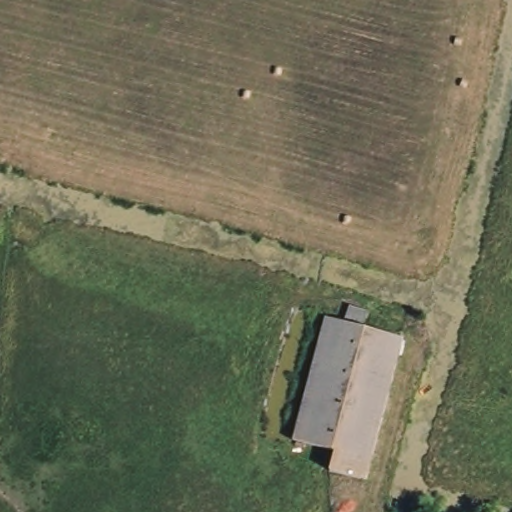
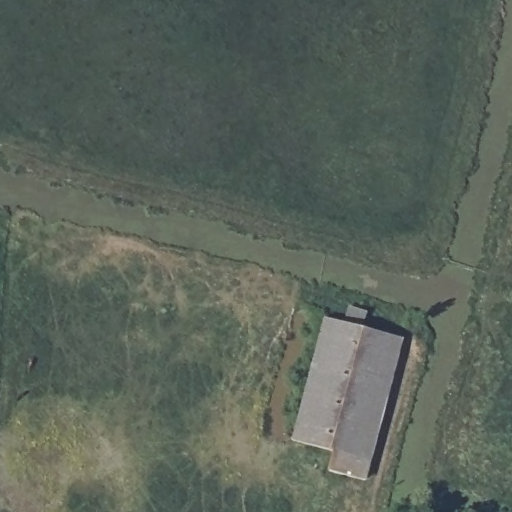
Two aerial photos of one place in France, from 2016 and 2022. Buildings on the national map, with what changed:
unchanged [(405,339),(371,483),(337,476),(342,454),(301,445),(330,320),(405,339)]

